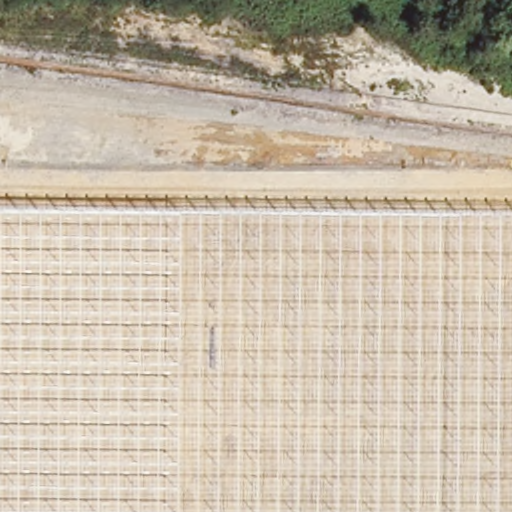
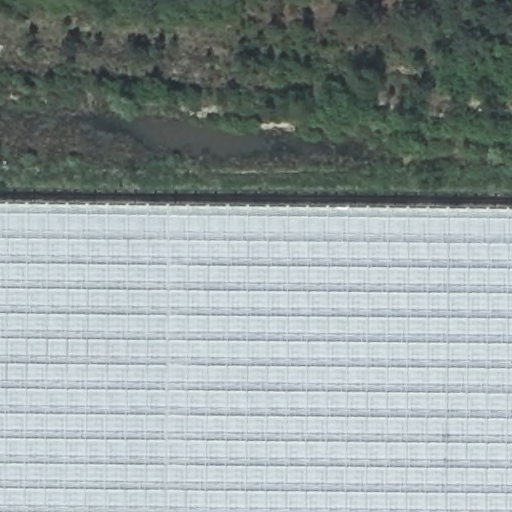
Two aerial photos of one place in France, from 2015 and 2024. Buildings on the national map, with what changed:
unchanged [(0,208),(512,212),(512,512),(0,512),(0,208)]

